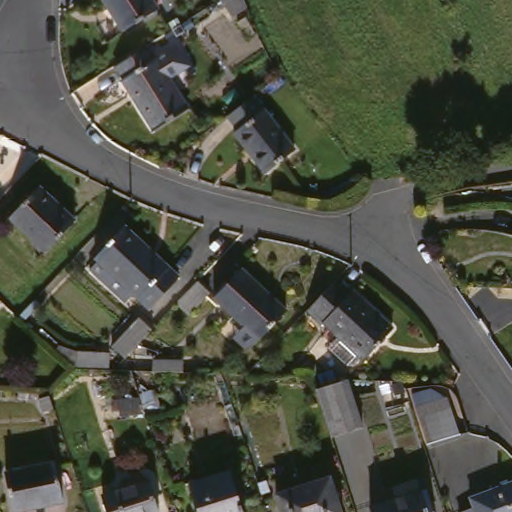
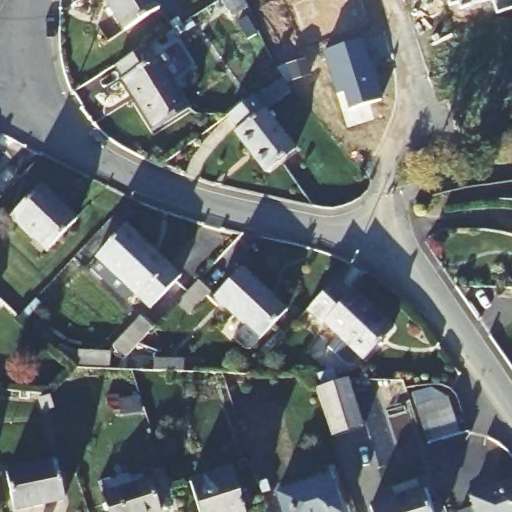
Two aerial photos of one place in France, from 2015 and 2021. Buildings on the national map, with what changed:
unchanged [(161,3),(128,25),(112,0),(159,0),(161,3)]
unchanged [(243,9),(232,16),(221,0),(237,0),(243,9)]
new [(459,9),(457,3),(449,5),(447,0),(487,0),(459,9)]
new [(512,8),(496,13),(491,0),(512,0),(512,8)]
new [(359,38),(368,66),(369,65),(379,98),(349,108),(343,91),(336,93),(322,50),(359,38)]
unchanged [(193,102),(158,124),(126,74),(127,72),(120,61),(154,40),(193,102)]
unchanged [(294,148),(264,171),(233,132),(236,130),(226,115),(254,94),(294,148)]
unchanged [(74,219),(44,250),(11,216),(39,185),(74,219)]
unchanged [(4,198),(0,203),(0,194),(4,198)]
unchanged [(179,277),(149,309),(94,258),(124,226),(179,277)]
unchanged [(218,291),(245,262),(291,305),(263,333),(253,343),(249,343),(234,328),(246,317),(218,291)]
unchanged [(328,316),(326,319),(311,305),(341,273),(355,287),(358,284),(398,322),(367,353),(366,352),(359,360),(351,361),(331,340),(342,329),(328,316)]
unchanged [(216,286),(196,308),(183,296),(204,274),(216,286)]
unchanged [(152,329),(125,358),(111,345),(139,317),(152,329)]
unchanged [(109,366),(76,363),(78,351),(110,352),(109,366)]
unchanged [(364,425),(332,436),(321,398),(317,388),(349,377),(356,399),(364,425)]
unchanged [(411,388),(429,382),(433,395),(449,390),(453,401),(460,426),(428,437),(414,397),(411,388)]
unchanged [(141,411),(121,413),(119,398),(139,397),(141,411)]
unchanged [(63,502),(14,511),(6,471),(54,461),(63,502)]
unchanged [(200,512),(191,482),(230,469),(243,512),(200,512)]
unchanged [(283,512),(276,493),(330,475),(341,512),(283,512)]
unchanged [(109,512),(103,493),(149,477),(159,512),(109,512)]
unchanged [(512,480),(512,512),(476,512),(471,495),(512,480)]
unchanged [(374,512),(371,504),(421,489),(428,512),(374,512)]

